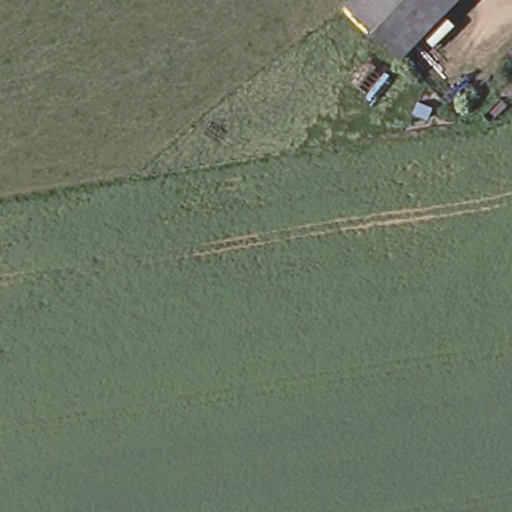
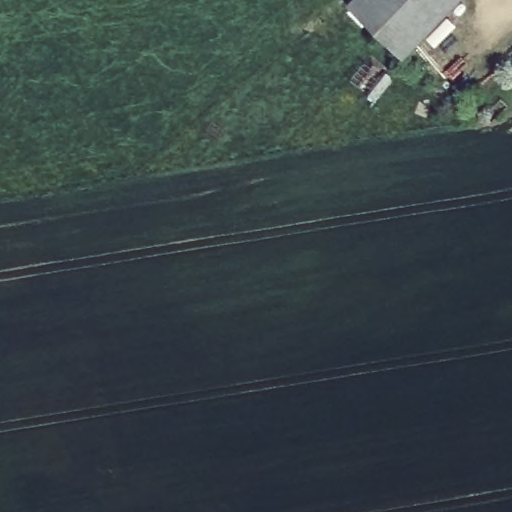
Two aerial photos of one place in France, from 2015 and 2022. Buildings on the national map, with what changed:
unchanged [(454,0),(402,56),(342,0),(454,0)]

